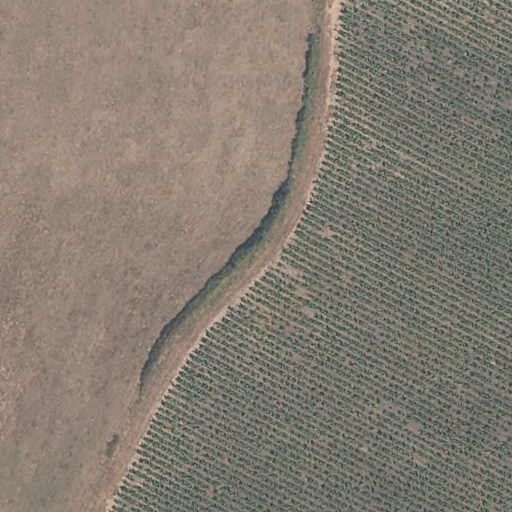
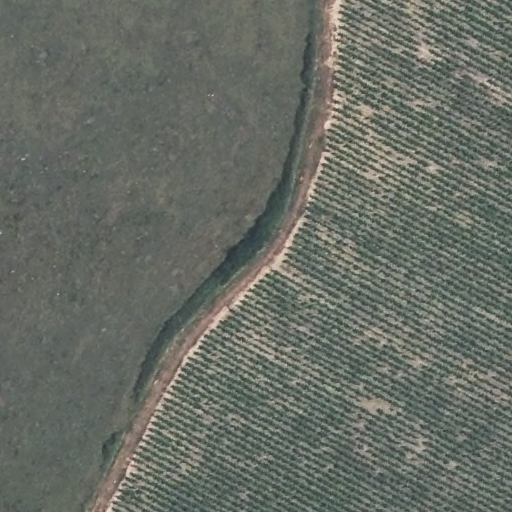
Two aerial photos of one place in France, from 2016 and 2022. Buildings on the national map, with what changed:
[]

